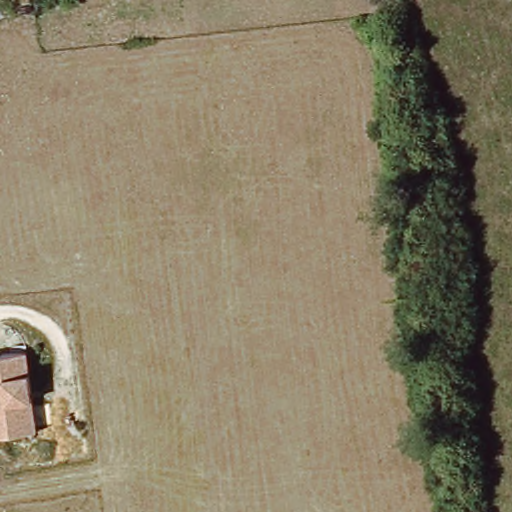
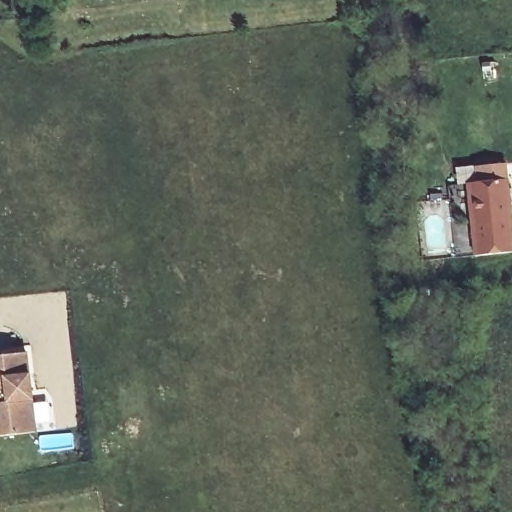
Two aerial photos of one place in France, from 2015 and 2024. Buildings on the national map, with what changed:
new [(466,182),(478,181),(477,165),(512,161),(512,167),(512,253),(472,257),(466,182)]
unchanged [(39,430),(0,435),(0,352),(28,349),(39,430)]

